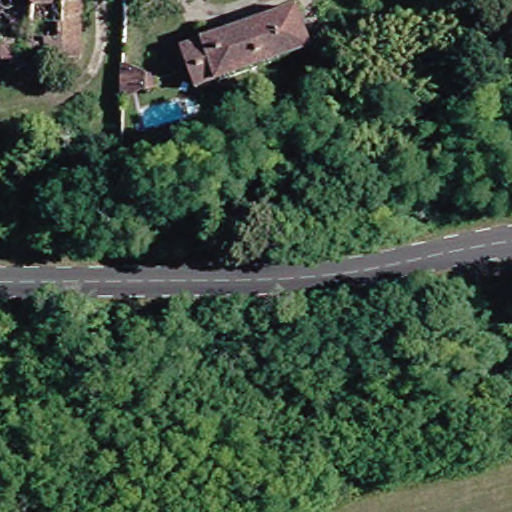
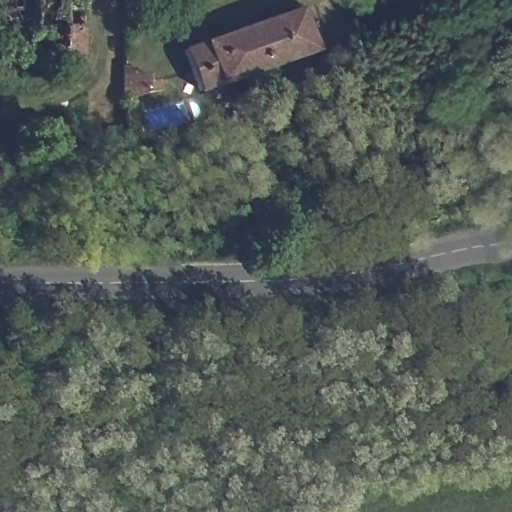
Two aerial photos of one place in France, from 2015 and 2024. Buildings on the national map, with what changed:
unchanged [(0,60),(0,0),(74,0),(74,61),(0,60)]
unchanged [(306,55),(194,91),(180,51),(295,16),(306,55)]

